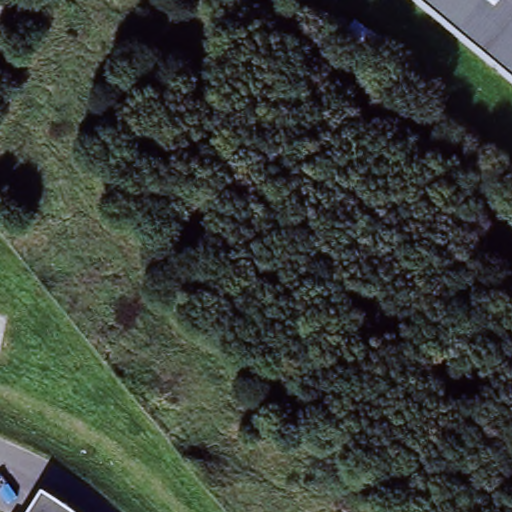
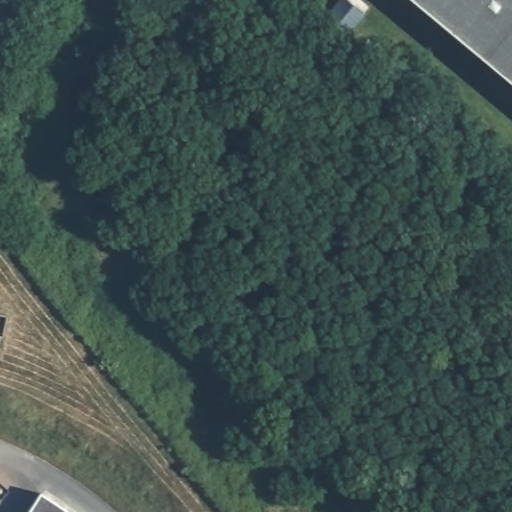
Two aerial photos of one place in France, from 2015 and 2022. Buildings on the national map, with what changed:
unchanged [(512,85),(410,0),(512,0),(512,85)]
unchanged [(12,10),(2,26),(0,25),(0,14),(5,7),(12,10)]
unchanged [(65,501),(58,512),(29,512),(45,487),(65,501)]
unchanged [(80,512),(58,512),(65,501),(80,512)]

